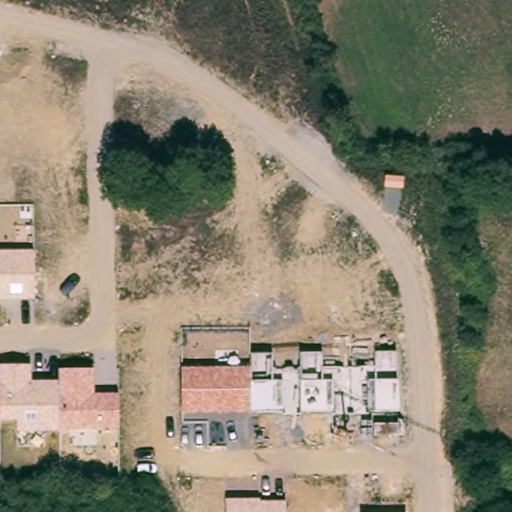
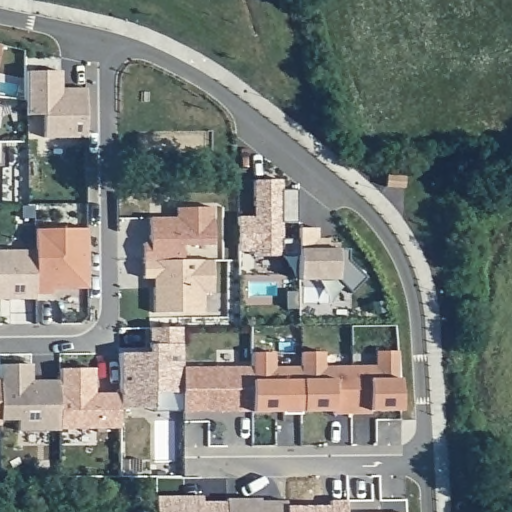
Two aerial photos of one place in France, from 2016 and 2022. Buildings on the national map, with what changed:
new [(62,85),(68,85),(87,85),(88,134),(45,135),(45,111),(27,111),(27,67),(62,67),(62,85)]
new [(255,212),(254,176),(282,175),(282,185),(298,185),(299,218),(283,219),(283,235),(299,234),(299,250),(255,251),(255,247),(239,247),(239,212),(255,212)]
new [(143,243),(150,242),(150,218),(176,217),(176,209),(212,208),(212,245),(182,245),(183,260),(212,259),(214,293),(204,294),(204,311),(154,312),(153,278),(144,278),(143,243)]
new [(318,224),(318,239),(338,238),(339,244),(350,244),(350,255),(368,272),(353,288),(339,275),(300,275),(299,250),(299,234),(299,230),(299,224),(318,224)]
new [(88,229),(88,288),(52,289),(52,293),(36,295),(36,251),(35,230),(88,229)]
unchanged [(36,251),(36,298),(0,299),(0,252),(36,251)]
new [(149,352),(148,328),(182,327),(182,369),(183,393),(153,392),(153,406),(120,407),(120,395),(120,353),(149,352)]
unchanged [(366,380),(375,380),(375,352),(398,351),(399,410),(366,410),(366,380)]
unchanged [(182,369),(251,367),(251,353),(272,353),(273,381),(286,381),(286,410),(251,411),(183,412),(182,369)]
unchanged [(300,353),(323,353),(323,381),(333,381),(334,410),(300,413),(300,353)]
unchanged [(18,430),(17,420),(0,420),(0,366),(0,365),(32,366),(31,380),(60,380),(59,370),(93,370),(95,393),(120,395),(119,430),(18,430)]
new [(203,495),(203,501),(225,500),(225,512),(156,512),(156,496),(203,495)]
unchanged [(261,498),(261,502),(286,502),(286,512),(225,512),(225,500),(261,498)]

